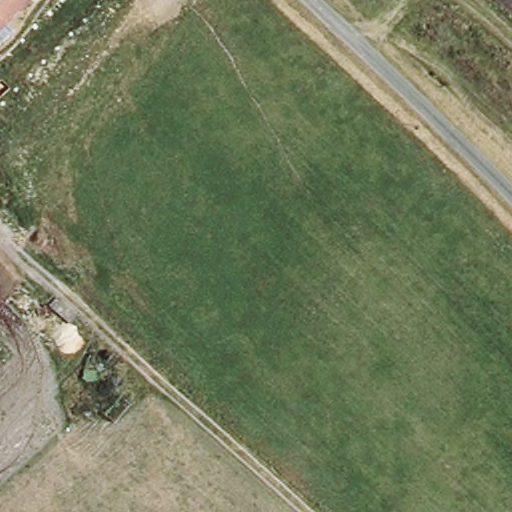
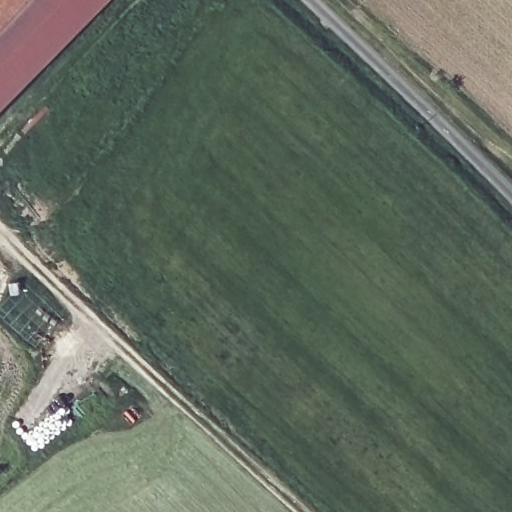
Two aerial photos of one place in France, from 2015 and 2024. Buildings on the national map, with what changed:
demolished [(0,34),(0,0),(35,0),(0,34)]
new [(0,114),(0,0),(112,0),(0,114)]

